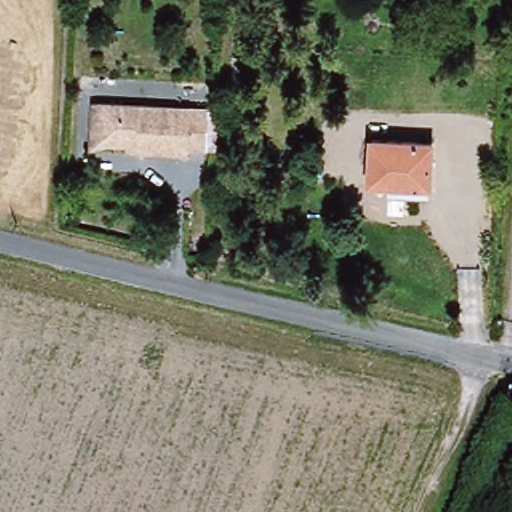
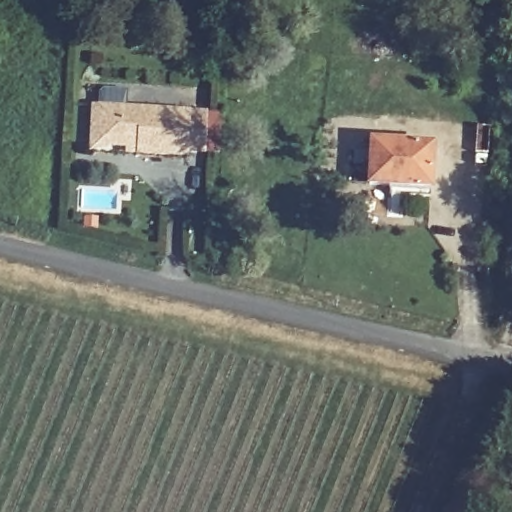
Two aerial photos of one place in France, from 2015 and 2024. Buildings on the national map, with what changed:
unchanged [(120,146),(107,146),(83,155),(84,106),(91,106),(204,109),(203,149),(187,149),(184,156),(135,156),(120,155),(120,146)]
unchanged [(377,139),(436,144),(431,195),(393,192),(394,182),(374,181),(377,139)]

